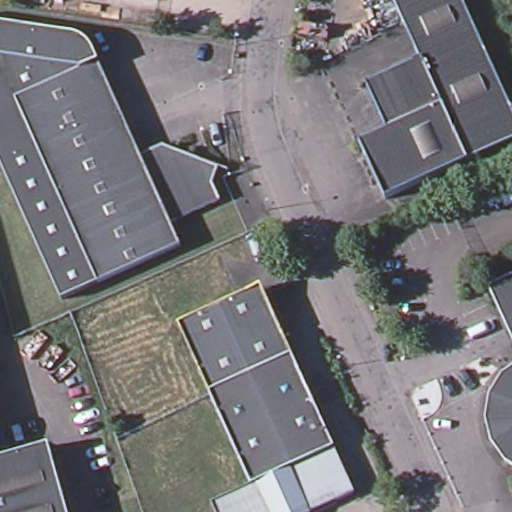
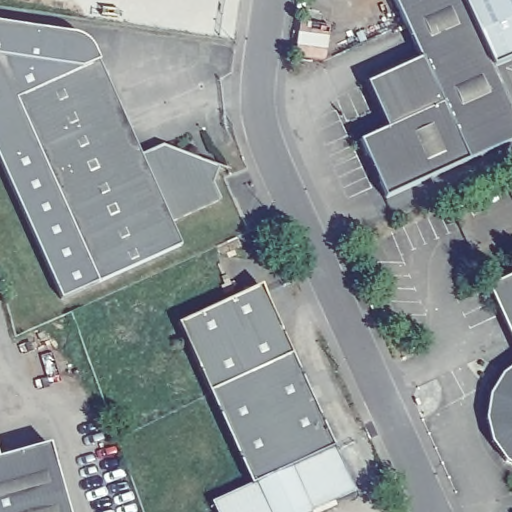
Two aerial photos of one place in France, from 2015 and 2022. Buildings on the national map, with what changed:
unchanged [(467,160),(420,59),(404,22),(394,0),(462,0),(512,110),(512,138),(467,160)]
new [(497,62),(469,0),(512,0),(512,56),(497,62)]
unchanged [(0,161),(0,30),(72,41),(77,44),(83,49),(90,59),(93,69),(18,104),(103,287),(65,303),(0,161)]
unchanged [(385,199),(359,142),(387,129),(366,85),(420,59),(467,160),(385,199)]
unchanged [(185,249),(103,287),(18,104),(93,69),(101,65),(144,158),(175,226),(185,249)]
unchanged [(165,148),(222,170),(217,184),(225,203),(175,226),(144,158),(165,148)]
unchanged [(484,290),(512,276),(512,350),(484,290)]
unchanged [(184,329),(259,296),(267,292),(298,361),(215,398),(184,329)]
unchanged [(340,454),(257,492),(215,398),(298,361),(340,454)]
unchanged [(502,465),(487,445),(482,420),(485,399),(500,377),(512,370),(512,471),(502,465)]
unchanged [(62,512),(0,512),(0,459),(45,447),(62,512)]
unchanged [(217,510),(257,492),(340,454),(360,498),(340,507),(337,502),(315,512),(218,512),(217,510)]

